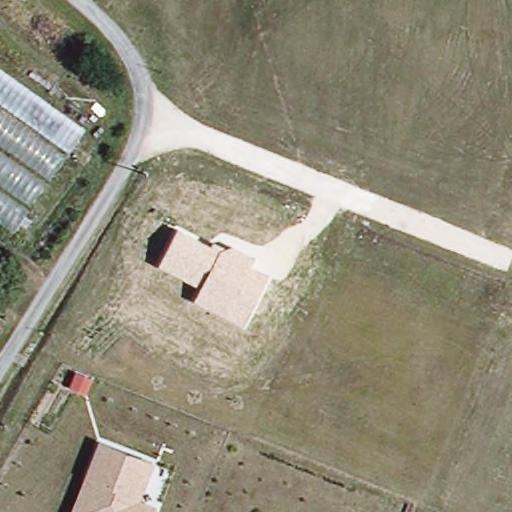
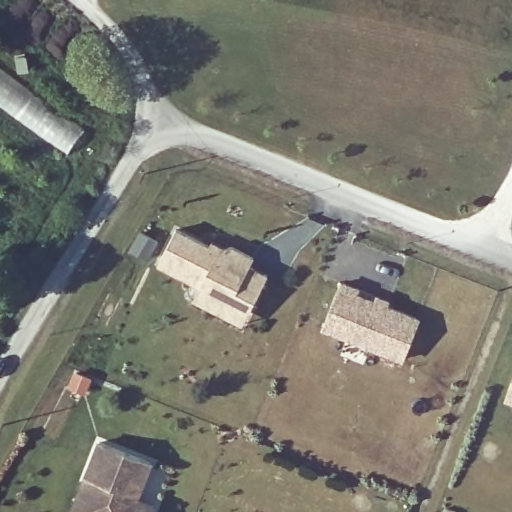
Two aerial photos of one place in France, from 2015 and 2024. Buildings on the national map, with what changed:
demolished [(85,129),(14,233),(0,223),(0,68),(85,129)]
unchanged [(213,243),(215,239),(255,258),(252,265),(270,274),(244,325),(192,300),(199,286),(159,264),(177,226),(213,243)]
new [(322,330),(342,280),(364,289),(363,294),(377,299),(379,295),(393,301),(391,305),(422,318),(404,363),(322,330)]
new [(512,394),(512,403),(508,402),(512,394)]
unchanged [(158,462),(145,498),(161,505),(159,512),(73,512),(100,441),(158,462)]

